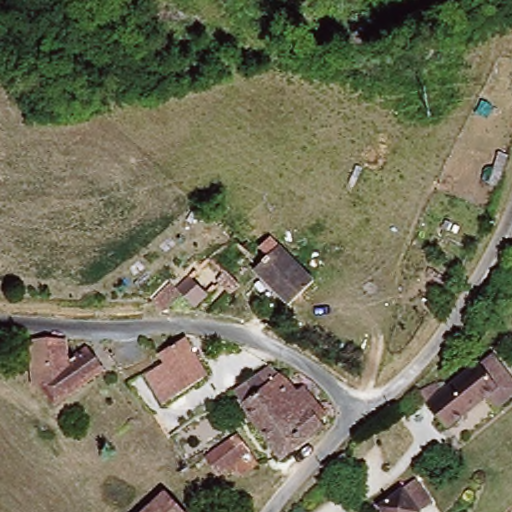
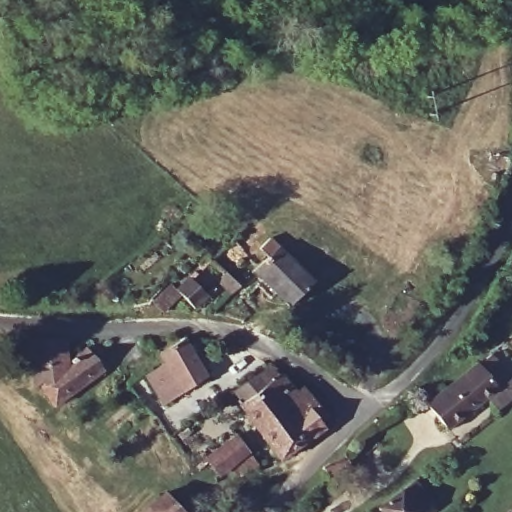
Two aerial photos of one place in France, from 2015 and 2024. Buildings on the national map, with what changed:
unchanged [(234,248),(241,255),(223,272),(205,255),(229,232),(241,220),(252,231),(234,248)]
unchanged [(267,259),(260,253),(268,246),(311,284),(311,285),(291,307),(254,273),(267,259)]
unchanged [(236,282),(226,292),(214,281),(223,272),(236,282)]
unchanged [(157,309),(176,291),(182,298),(195,285),(213,300),(199,313),(186,301),(168,319),(161,313),(157,309)]
unchanged [(53,369),(40,372),(38,373),(35,367),(29,346),(33,345),(46,340),(66,339),(69,364),(88,347),(108,368),(77,398),(69,406),(66,410),(45,387),(49,383),(58,375),(56,368),(53,369)]
unchanged [(154,405),(136,379),(156,366),(151,357),(176,342),(198,376),(154,405)]
unchanged [(482,364),(483,366),(495,357),(506,372),(494,381),(502,393),(448,432),(423,397),(419,393),(437,385),(440,389),(442,392),(482,364)]
unchanged [(292,395),(298,392),(304,399),(327,427),(297,452),(286,460),(277,448),(241,407),(238,410),(228,398),(255,378),(264,372),(273,383),(279,379),(292,395)]
unchanged [(240,438),(261,467),(244,480),(234,467),(228,472),(216,456),(240,438)]
unchanged [(343,457),(348,465),(324,479),(319,473),(319,472),(343,457)]
unchanged [(379,510),(404,492),(418,482),(434,504),(423,512),(381,512),(379,510)]
unchanged [(177,512),(157,512),(173,505),(177,512)]

